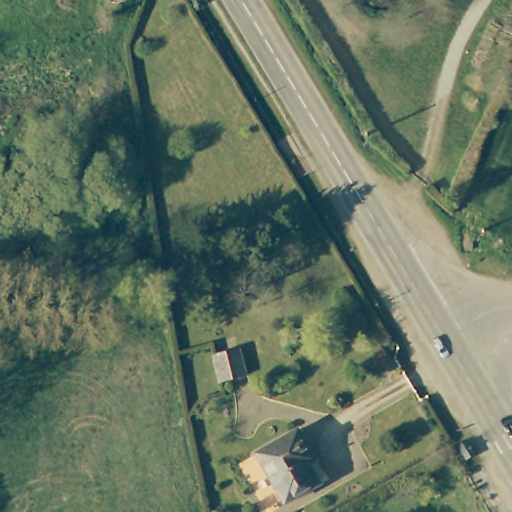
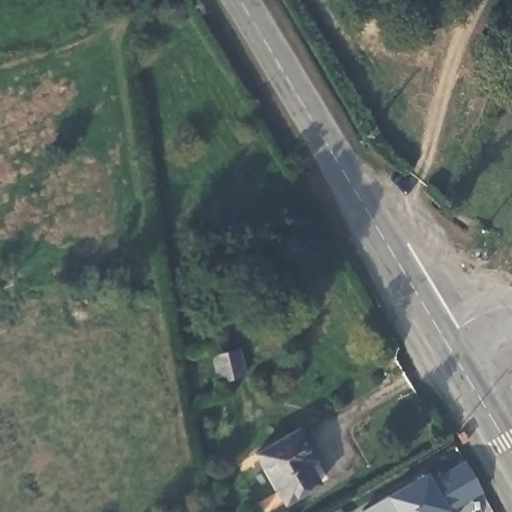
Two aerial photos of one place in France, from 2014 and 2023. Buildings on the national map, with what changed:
unchanged [(230,359),(235,384),(210,389),(204,364),(230,359)]
unchanged [(304,451),(321,481),(284,503),(255,454),(299,428),(310,447),(304,451)]
new [(425,473),(428,478),(449,467),(469,497),(444,508),(447,512),(362,512),(360,510),(386,496),(425,473)]

